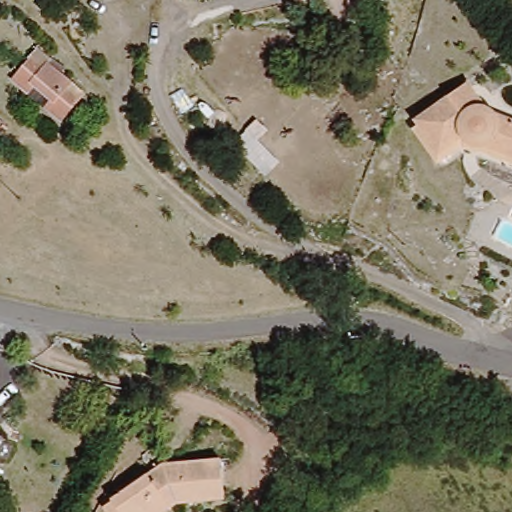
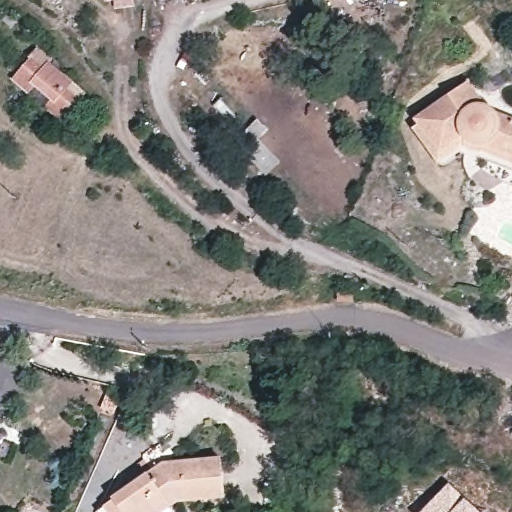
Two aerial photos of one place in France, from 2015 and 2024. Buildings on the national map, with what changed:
unchanged [(45,49),(87,91),(62,116),(55,108),(52,111),(19,76),(45,49)]
unchanged [(470,143),(449,158),(417,114),(479,71),(506,109),(512,112),(512,163),(470,143)]
unchanged [(0,453),(0,444),(4,446),(0,453)]
unchanged [(229,503),(177,510),(173,512),(102,512),(101,510),(163,463),(221,458),(229,503)]
new [(448,483),(480,512),(421,512),(448,483)]

